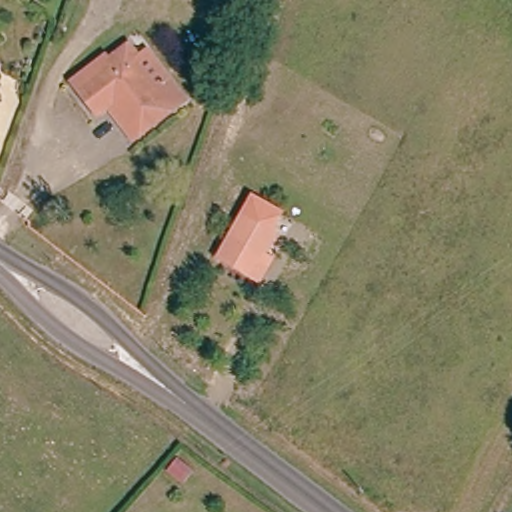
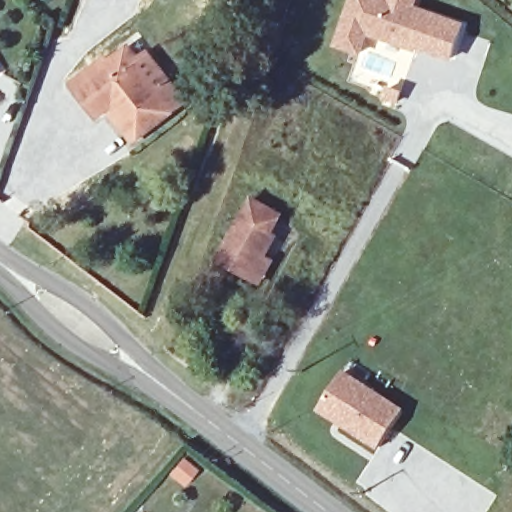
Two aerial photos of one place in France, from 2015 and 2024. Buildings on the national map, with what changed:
new [(369,36),(362,56),(332,47),(350,0),(419,0),(416,7),(465,23),(452,62),(369,36)]
unchanged [(104,110),(95,117),(76,92),(107,68),(102,61),(123,45),(133,58),(144,49),(183,98),(137,134),(129,140),(104,110)]
unchanged [(248,267),(217,249),(242,206),(273,223),(261,245),(271,251),(259,273),(248,267)]
new [(318,410),(344,369),(404,409),(378,449),(318,410)]

